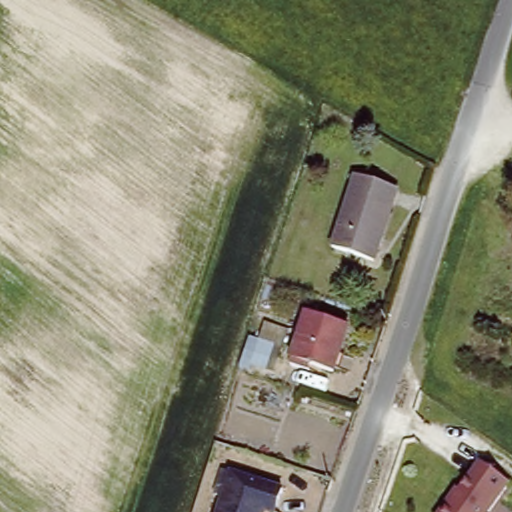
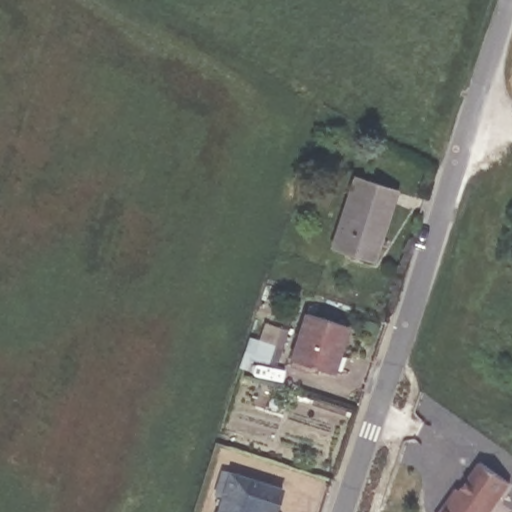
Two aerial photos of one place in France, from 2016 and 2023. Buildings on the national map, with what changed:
unchanged [(333,246),(355,180),(394,192),(371,259),(333,246)]
unchanged [(290,360),(303,321),(344,333),(331,372),(290,360)]
unchanged [(479,458),(507,478),(483,512),(435,512),(447,496),(449,498),(479,458)]
unchanged [(233,470),(283,487),(274,512),(218,512),(233,470)]

